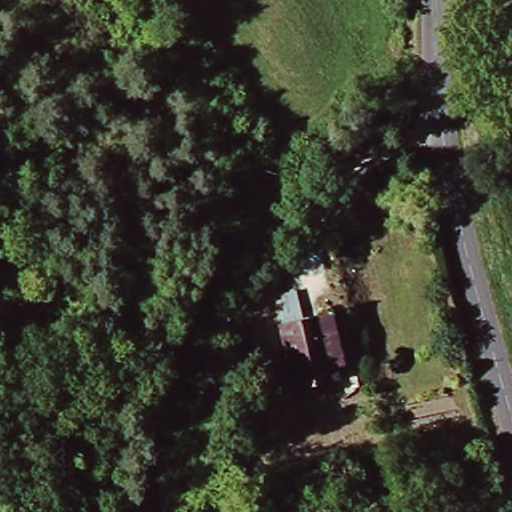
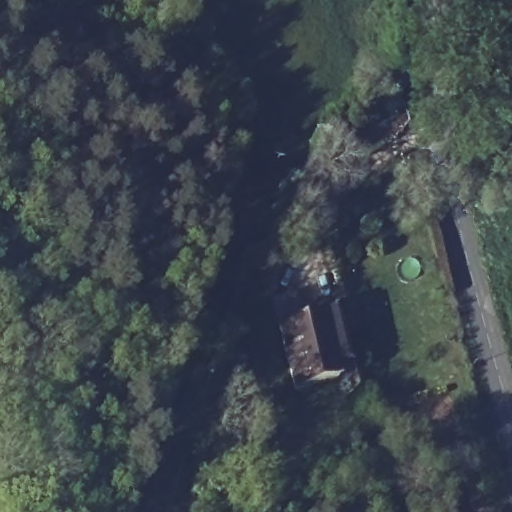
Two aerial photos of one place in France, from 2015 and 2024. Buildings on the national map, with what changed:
unchanged [(277,326),(329,313),(343,366),(333,368),(337,380),(295,391),(277,326)]

